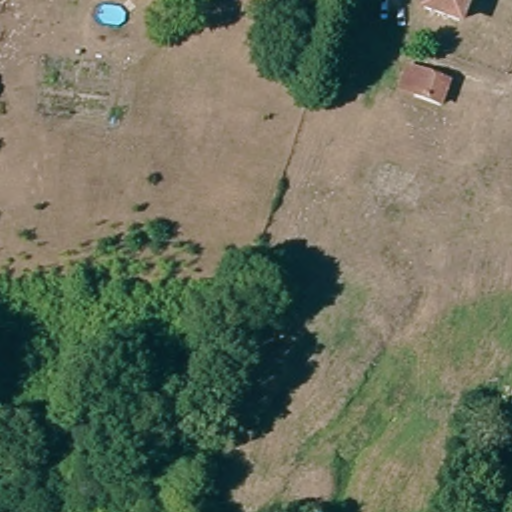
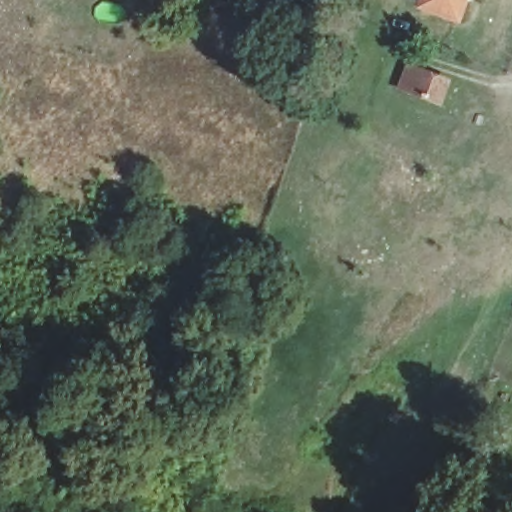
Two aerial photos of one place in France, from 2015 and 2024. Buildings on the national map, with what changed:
unchanged [(426,10),(430,0),(468,0),(462,19),(426,10)]
unchanged [(445,107),(415,97),(400,92),(409,65),(425,70),(455,81),(445,107)]

